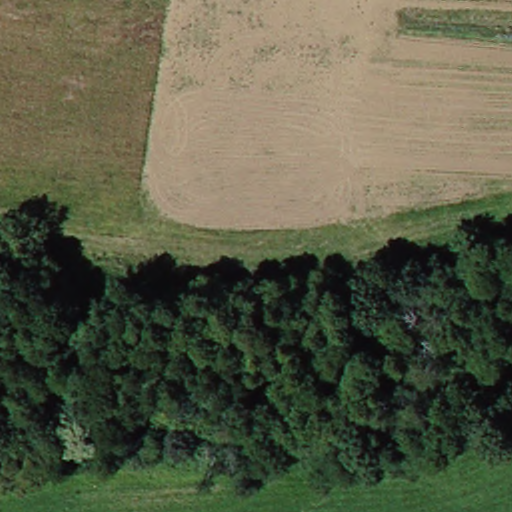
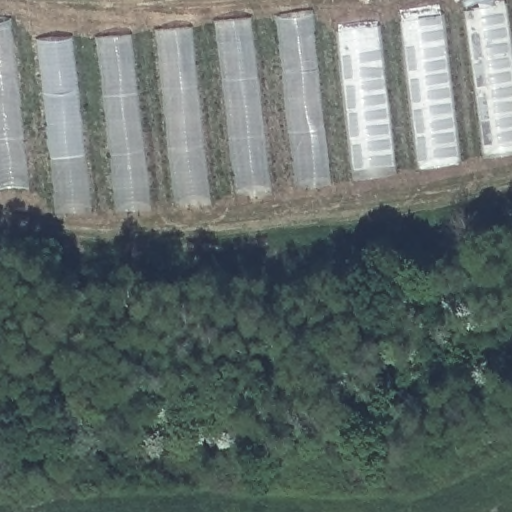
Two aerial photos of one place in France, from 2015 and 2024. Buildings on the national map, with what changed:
new [(463,12),(506,5),(512,54),(512,154),(483,159),(463,12)]
new [(295,188),(275,20),(311,16),(330,186),(295,188)]
new [(419,170),(401,21),(442,16),(460,163),(419,170)]
new [(236,195),(215,22),(250,19),(271,192),(236,195)]
new [(0,192),(0,21),(10,21),(29,190),(0,192)]
new [(355,182),(338,32),(379,27),(395,176),(355,182)]
new [(175,206),(155,32),(190,29),(210,205),(175,206)]
new [(115,212),(95,39),(131,36),(151,210),(115,212)]
new [(55,214),(36,42),(71,39),(91,212),(55,214)]

